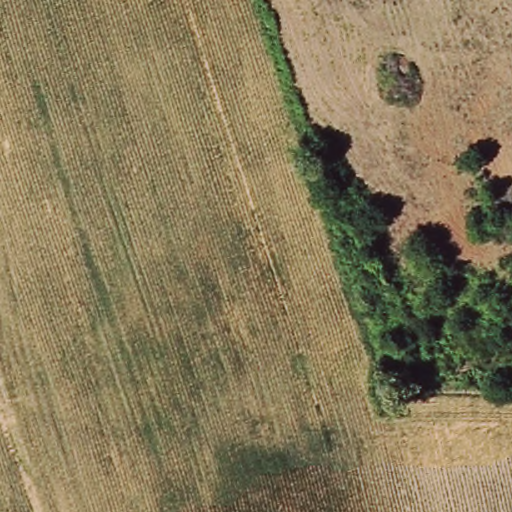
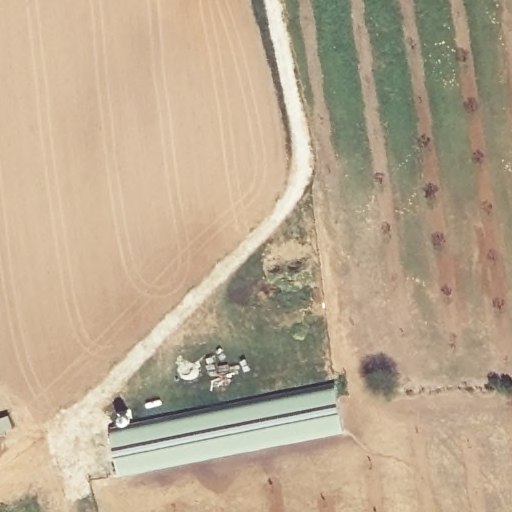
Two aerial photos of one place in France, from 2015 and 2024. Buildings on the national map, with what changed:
new [(335,383),(344,433),(120,476),(110,429),(335,383)]

